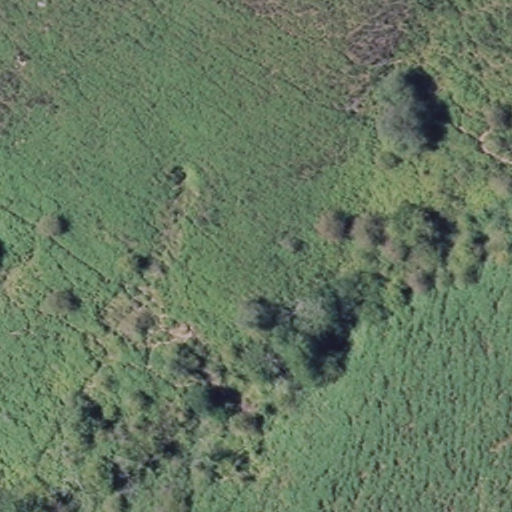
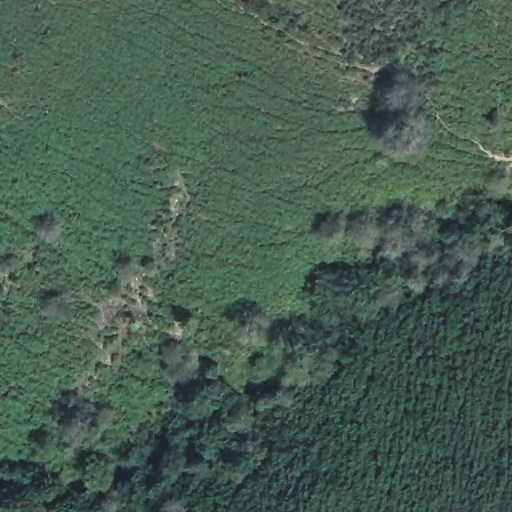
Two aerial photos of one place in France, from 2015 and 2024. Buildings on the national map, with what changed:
[]

